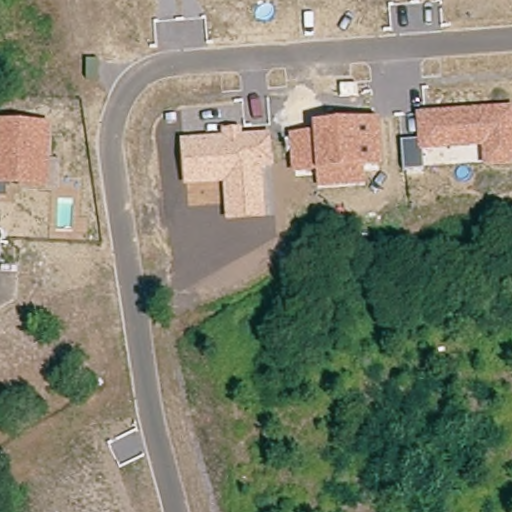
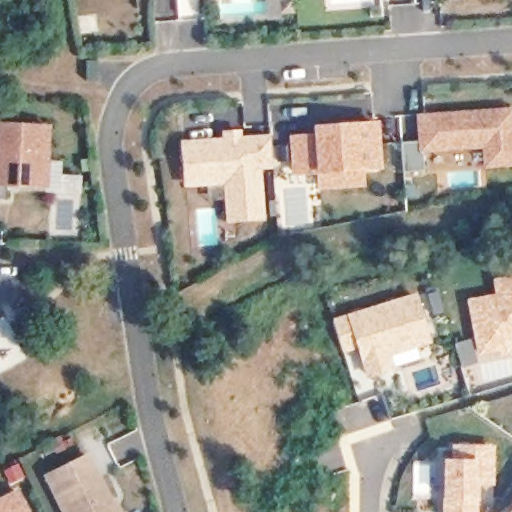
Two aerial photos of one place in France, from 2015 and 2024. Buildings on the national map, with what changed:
unchanged [(512,167),(482,170),(481,149),(422,153),(423,171),(402,174),(401,143),(417,141),(417,114),(512,108),(512,167)]
unchanged [(313,134),(313,126),(378,120),(382,169),(365,172),(365,187),(318,191),(316,177),(293,178),(288,136),(313,134)]
unchanged [(50,125),(48,161),(62,161),(61,190),(10,189),(8,199),(0,198),(0,126),(50,125)]
unchanged [(222,138),(221,130),(242,129),(242,136),(272,134),(274,168),(263,169),(266,220),(226,224),(223,184),(184,188),(181,140),(222,138)]
new [(492,280),(512,276),(512,355),(500,358),(499,352),(480,357),(468,301),(496,294),(492,280)]
new [(415,292),(431,343),(417,348),(420,358),(366,379),(356,351),(343,355),(332,318),(415,292)]
new [(495,446),(495,484),(479,484),(479,500),(479,512),(443,512),(443,501),(443,460),(453,459),(452,444),(495,446)]
unchanged [(47,476),(87,456),(111,503),(115,501),(117,507),(120,512),(65,512),(47,476)]
unchanged [(17,492),(27,512),(0,512),(0,501),(17,492)]
new [(512,508),(512,512),(509,512),(512,508)]

